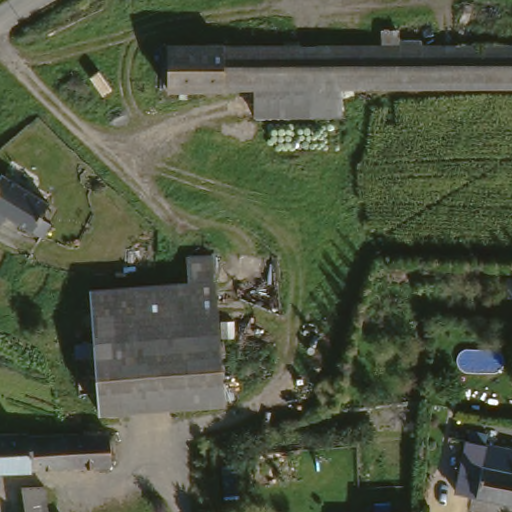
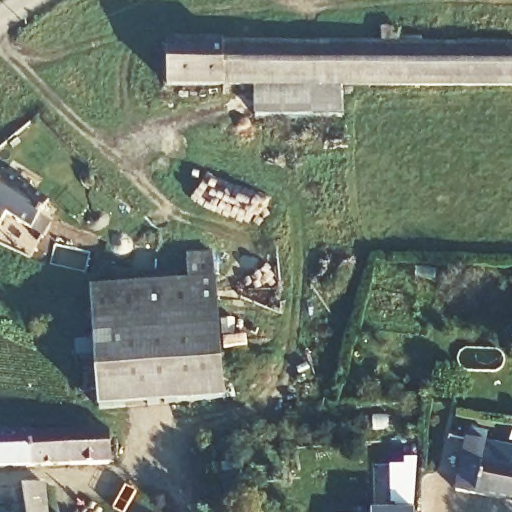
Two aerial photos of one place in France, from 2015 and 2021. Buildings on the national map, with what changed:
unchanged [(405,36),(405,46),(512,50),(512,94),(344,89),(256,87),(164,84),(166,39),(383,45),(383,35),(405,36)]
unchanged [(343,118),(255,116),(256,87),(344,89),(343,118)]
unchanged [(51,206),(32,232),(5,213),(24,186),(51,206)]
unchanged [(99,419),(92,293),(188,283),(189,259),(217,257),(223,405),(99,419)]
unchanged [(60,437),(70,437),(71,469),(0,470),(0,434),(29,435),(30,438),(60,437)]
unchanged [(109,437),(110,469),(71,469),(70,437),(109,437)]
unchanged [(474,498),(455,495),(466,438),(512,447),(512,505),(474,498)]
unchanged [(27,488),(47,487),(50,512),(29,512),(27,488)]

